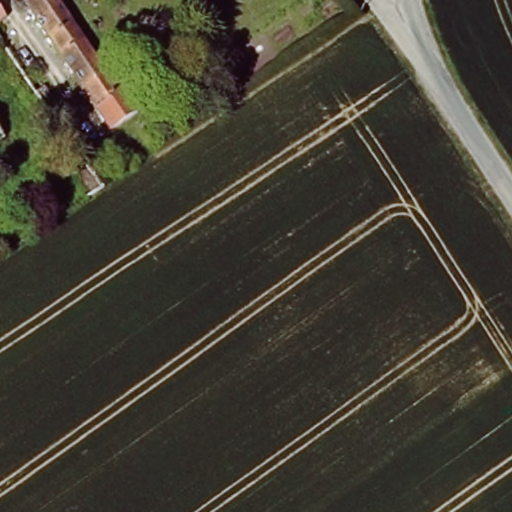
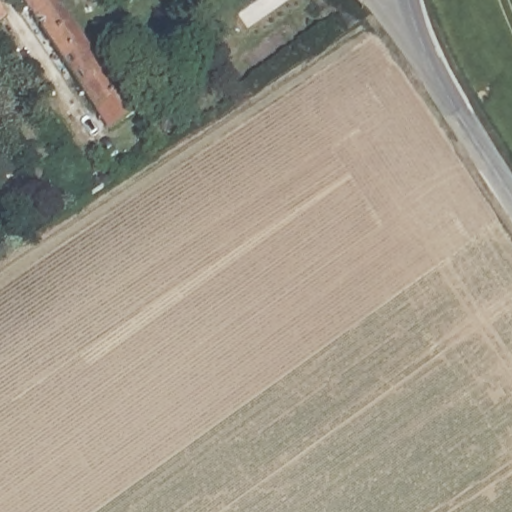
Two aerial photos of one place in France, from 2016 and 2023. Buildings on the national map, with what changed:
unchanged [(83,101),(13,0),(44,0),(84,56),(92,63),(99,71),(107,85),(121,107),(97,123),(83,101)]
unchanged [(0,24),(0,3),(10,17),(0,24)]
unchanged [(0,140),(0,137),(1,139),(0,140)]

